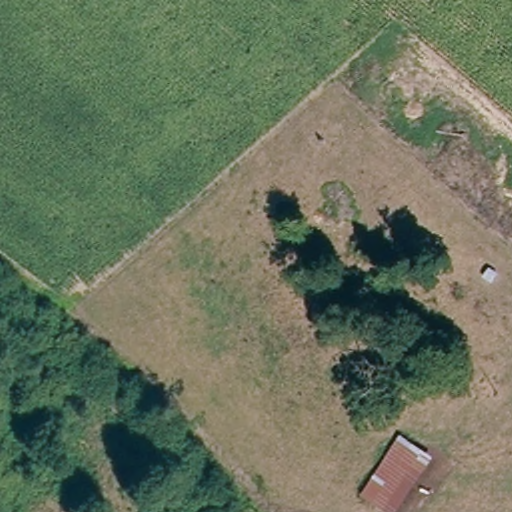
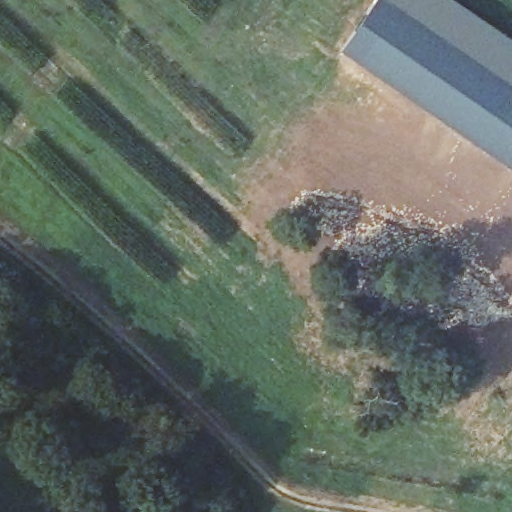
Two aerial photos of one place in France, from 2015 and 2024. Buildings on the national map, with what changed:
new [(339,48),(373,0),(457,0),(512,39),(512,168),(339,48)]
demolished [(439,454),(403,512),(388,512),(365,493),(403,432),(439,454)]

